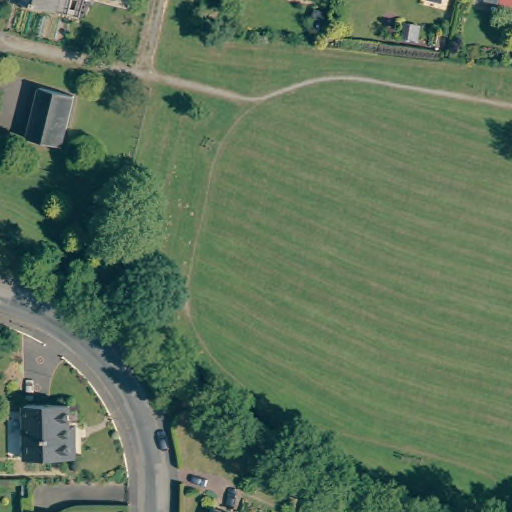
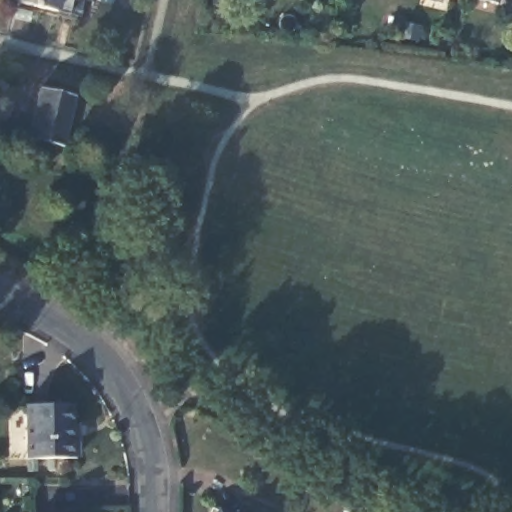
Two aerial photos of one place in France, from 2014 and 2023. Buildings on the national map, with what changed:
unchanged [(30,0),(65,0),(64,8),(30,0)]
unchanged [(81,93),(70,143),(35,135),(47,84),(81,93)]
unchanged [(30,398),(75,398),(75,417),(80,417),(80,428),(81,450),(31,450),(30,398)]
unchanged [(234,512),(222,512),(224,507),(234,512)]

